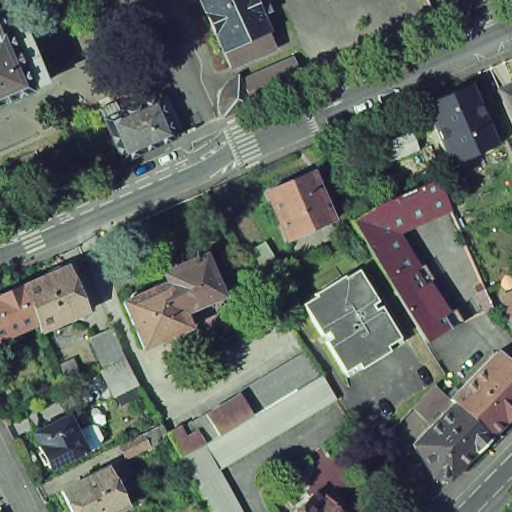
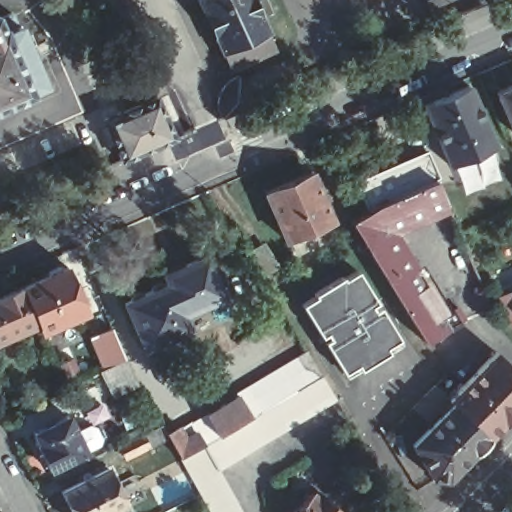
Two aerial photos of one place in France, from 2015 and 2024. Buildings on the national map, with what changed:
unchanged [(222,44),(202,0),(266,0),(269,7),(259,11),(266,25),(274,43),(230,63),(222,44)]
unchanged [(1,29),(16,22),(21,35),(23,34),(46,87),(48,93),(34,99),(35,102),(0,117),(0,26),(1,29)]
unchanged [(218,107),(217,101),(217,94),(219,88),(222,83),(226,78),(231,74),(237,71),(240,77),(251,72),(291,55),(301,78),(261,96),(250,100),(221,113),(218,107)]
unchanged [(512,84),(512,126),(497,91),(512,84)]
unchanged [(450,164),(425,107),(469,87),(494,145),(450,164)]
unchanged [(154,108),(167,102),(185,143),(132,166),(114,124),(109,114),(124,107),(129,117),(130,119),(154,108)]
unchanged [(266,193),(312,173),(332,221),(286,241),(266,193)]
unchanged [(453,310),(461,324),(449,329),(444,331),(425,343),(351,222),(368,212),(378,205),(435,180),(446,203),(445,203),(383,231),(436,318),(441,315),(453,310)]
unchanged [(130,305),(131,302),(132,300),(135,298),(137,297),(140,298),(143,299),(151,296),(152,293),(153,291),(156,289),(158,288),(161,289),(164,290),(168,288),(164,279),(204,262),(222,301),(183,318),(190,333),(144,353),(124,308),(130,305)]
unchanged [(52,276),(52,274),(53,271),(63,266),(67,268),(68,269),(73,267),(92,312),(46,332),(42,324),(28,290),(26,287),(52,276)]
unchanged [(315,296),(314,294),(342,277),(343,279),(357,270),(376,302),(371,305),(374,310),(380,307),(399,339),(386,347),(389,352),(360,369),(357,364),(344,373),(324,341),(328,338),(325,333),(321,336),(301,304),(315,296)]
unchanged [(26,287),(28,290),(42,324),(0,342),(0,298),(26,287)]
unchanged [(500,297),(512,292),(512,324),(500,297)]
unchanged [(114,396),(109,385),(101,370),(100,370),(90,338),(112,328),(115,337),(124,358),(132,373),(137,384),(114,396)]
unchanged [(512,368),(512,414),(489,438),(463,413),(453,403),(452,402),(450,400),(496,352),(512,368)]
unchanged [(168,442),(181,434),(182,436),(193,430),(207,421),(222,411),(237,401),(236,399),(248,392),(259,385),(271,378),(282,371),(294,364),(306,356),(320,380),(335,403),(317,415),(218,476),(238,512),(207,512),(181,465),(168,442)]
unchanged [(448,480),(433,478),(413,445),(453,403),(463,413),(489,438),(448,480)]
unchanged [(50,473),(39,452),(41,451),(35,438),(68,422),(85,456),(50,473)]
unchanged [(119,450),(141,439),(143,438),(161,429),(168,441),(149,451),(126,463),(119,450)]
unchanged [(114,512),(72,512),(62,491),(84,480),(81,474),(88,471),(91,477),(108,468),(127,506),(114,512)]
unchanged [(326,507),(331,503),(340,512),(305,512),(318,499),(326,507)]

